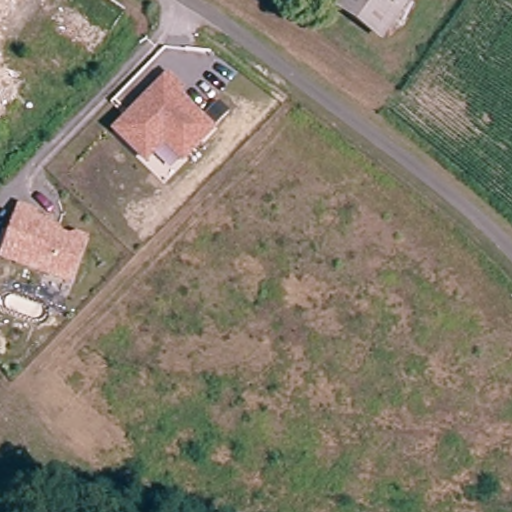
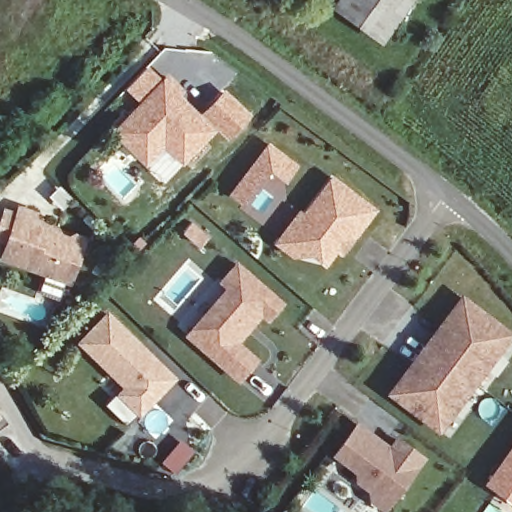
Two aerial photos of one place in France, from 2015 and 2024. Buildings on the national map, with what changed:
demolished [(47,30),(67,0),(115,0),(130,10),(95,61),(47,30)]
unchanged [(337,0),(418,0),(390,42),(337,0)]
demolished [(14,79),(0,111),(0,75),(1,73),(14,79)]
unchanged [(140,159),(113,135),(129,118),(136,110),(165,80),(178,92),(173,96),(211,131),(182,162),(163,145),(145,164),(140,159)]
new [(225,90),(252,116),(227,141),(217,129),(211,131),(197,118),(225,90)]
new [(298,165),(286,182),(270,170),(242,206),(227,196),(268,142),(298,165)]
new [(302,214),(331,173),(378,210),(341,256),(337,253),(325,267),(310,255),(293,259),(272,242),(298,210),(302,214)]
unchanged [(5,260),(23,210),(39,216),(37,220),(53,226),(53,228),(60,231),(58,236),(75,242),(77,237),(88,241),(86,246),(72,285),(5,260)]
new [(239,384),(183,335),(224,289),(216,283),(236,260),(286,303),(268,323),(262,317),(240,342),(259,360),(239,384)]
new [(512,337),(439,433),(386,394),(461,293),(512,332),(512,337)]
new [(177,377),(139,417),(117,396),(126,388),(76,342),(106,310),(177,377)]
new [(10,423),(0,431),(0,409),(10,423)]
new [(390,445),(396,434),(426,457),(386,512),(385,512),(369,503),(368,492),(355,484),(355,473),(331,457),(357,421),(390,445)]
new [(512,504),(482,483),(512,442),(512,504)]

